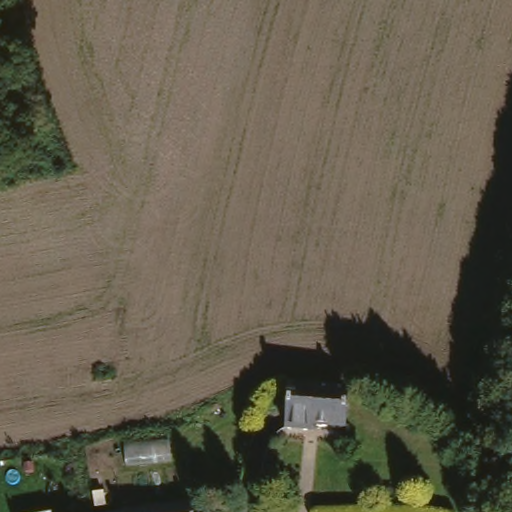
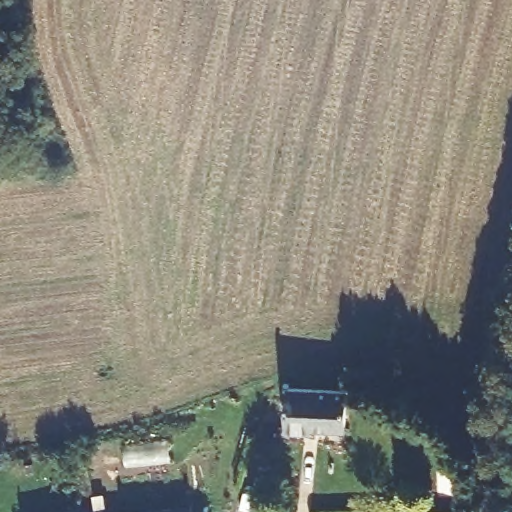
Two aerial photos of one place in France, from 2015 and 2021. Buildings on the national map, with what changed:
unchanged [(350,395),(347,432),(314,429),(313,436),(292,433),(295,390),(350,395)]
unchanged [(180,507),(189,506),(190,512),(151,512),(180,507)]

